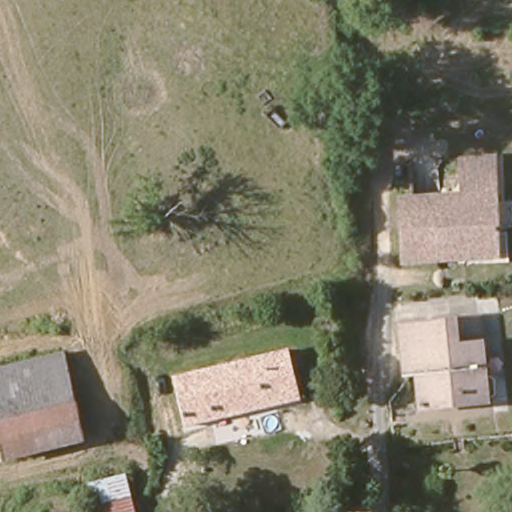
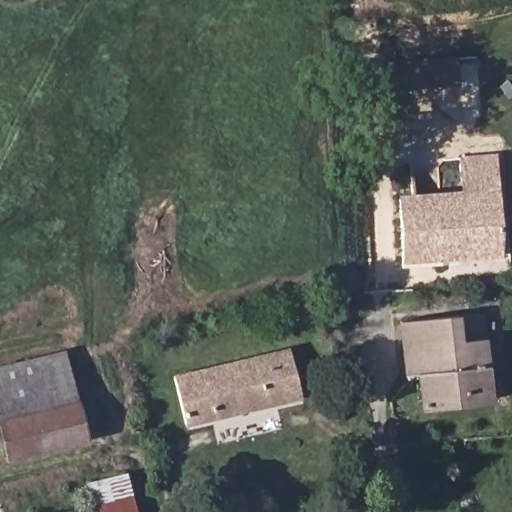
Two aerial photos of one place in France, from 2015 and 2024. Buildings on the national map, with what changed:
unchanged [(501,161),(506,260),(405,266),(402,200),(417,199),(415,166),(501,161)]
unchanged [(490,377),(500,381),(501,396),(492,400),(492,407),(424,411),(424,379),(409,380),(406,326),(483,317),(490,377)]
unchanged [(180,377),(290,347),(305,399),(192,428),(180,377)]
unchanged [(2,433),(0,425),(0,377),(66,358),(78,408),(2,433)]
unchanged [(2,433),(78,408),(87,438),(9,461),(2,433)]
unchanged [(81,482),(125,470),(136,512),(54,512),(88,507),(81,482)]

